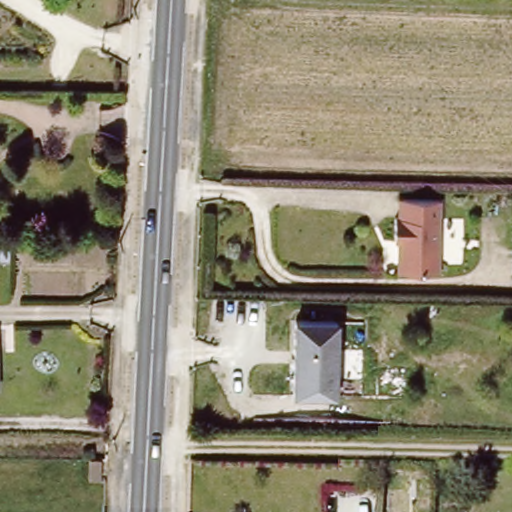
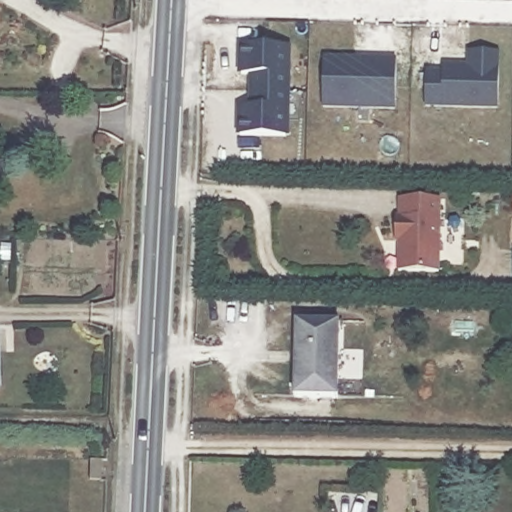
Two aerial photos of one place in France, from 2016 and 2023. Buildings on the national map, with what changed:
new [(237,135),(238,105),(248,106),(250,74),(238,75),(238,45),(290,46),(289,135),(237,135)]
new [(497,108),(425,106),(426,71),(443,71),(442,64),(468,66),(467,50),(499,51),(497,108)]
new [(394,110),(323,108),(323,54),(396,58),(394,110)]
unchanged [(435,195),(435,268),(394,267),(393,240),(383,240),(383,215),(393,215),(393,195),(435,195)]
unchanged [(291,399),(292,379),(294,324),(338,324),(336,380),(336,399),(291,399)]

